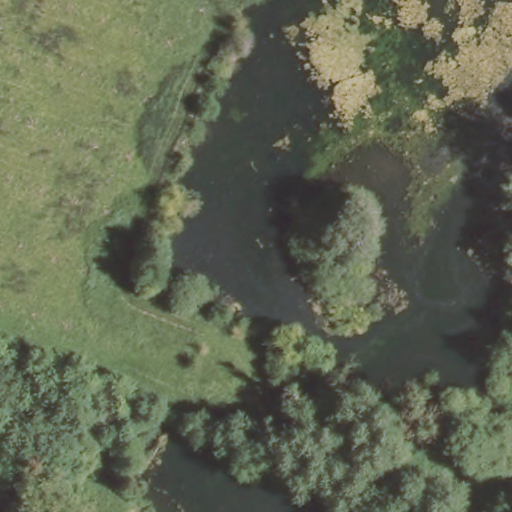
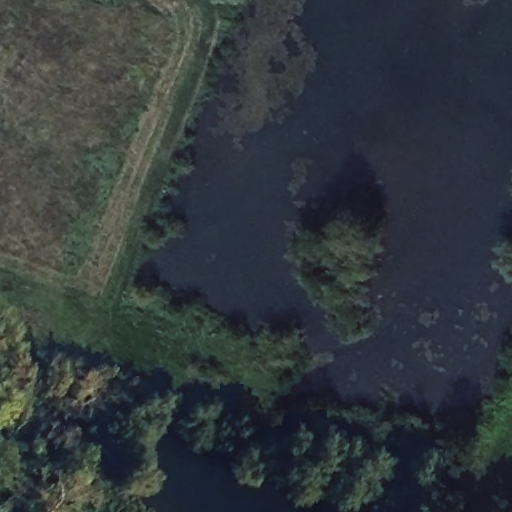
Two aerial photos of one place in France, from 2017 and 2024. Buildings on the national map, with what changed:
unchanged [(261,456),(268,444),(280,451),(275,461),(261,456)]

